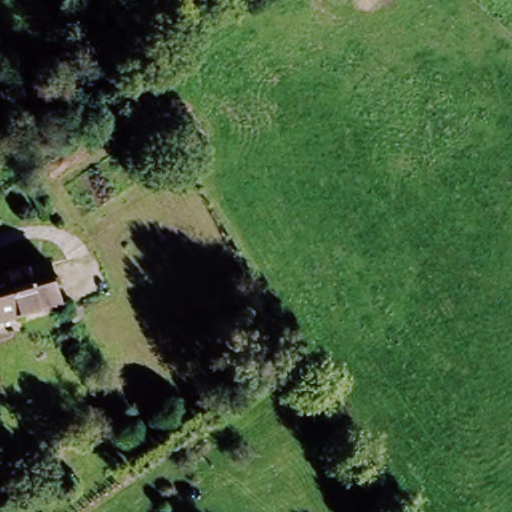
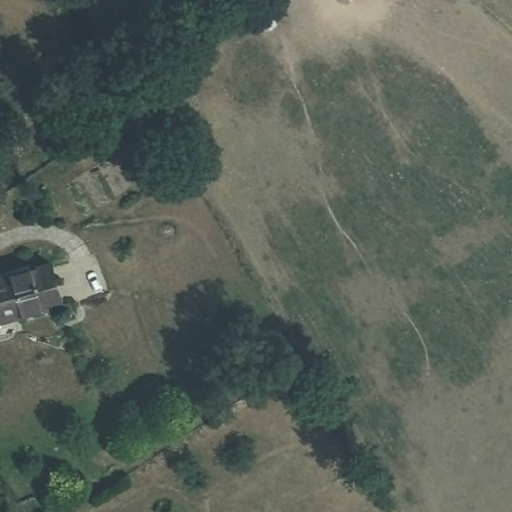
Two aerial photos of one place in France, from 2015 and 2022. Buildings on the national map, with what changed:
unchanged [(57,306),(0,327),(0,278),(41,262),(57,306)]

